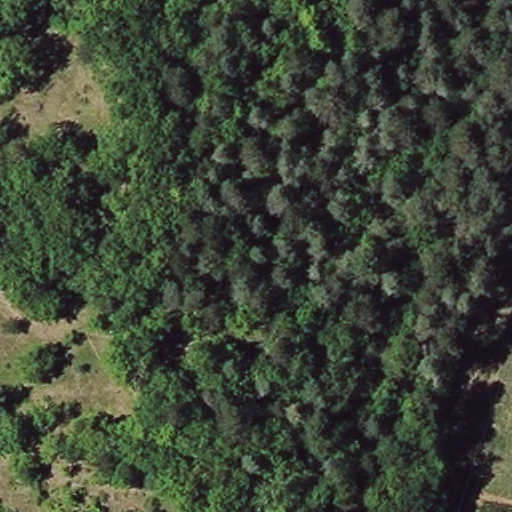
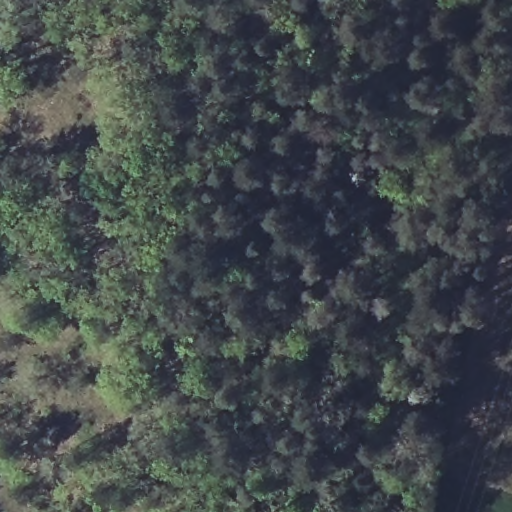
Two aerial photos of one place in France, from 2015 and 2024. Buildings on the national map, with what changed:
[]

